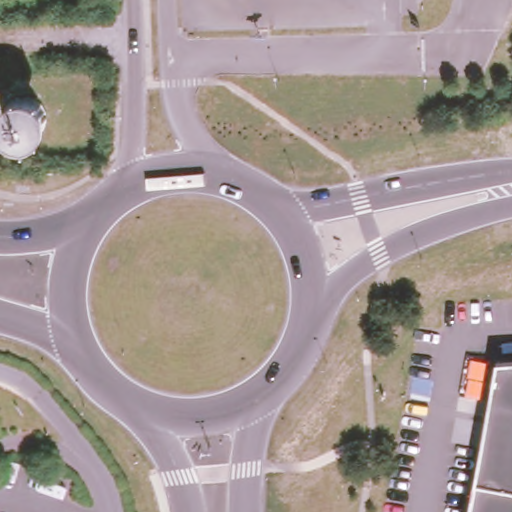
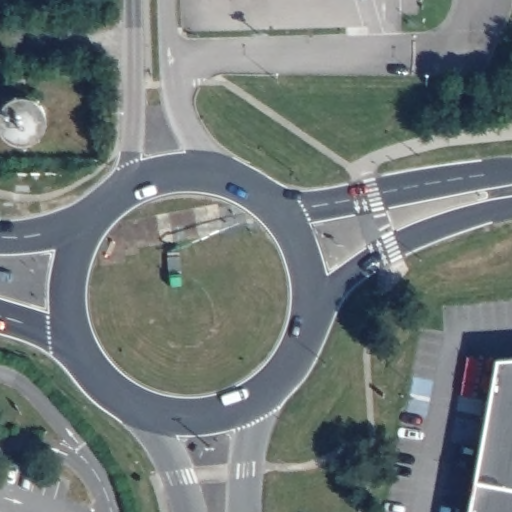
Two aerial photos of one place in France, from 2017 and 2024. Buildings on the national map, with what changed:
unchanged [(512,359),(512,512),(468,512),(496,360),(512,359)]

